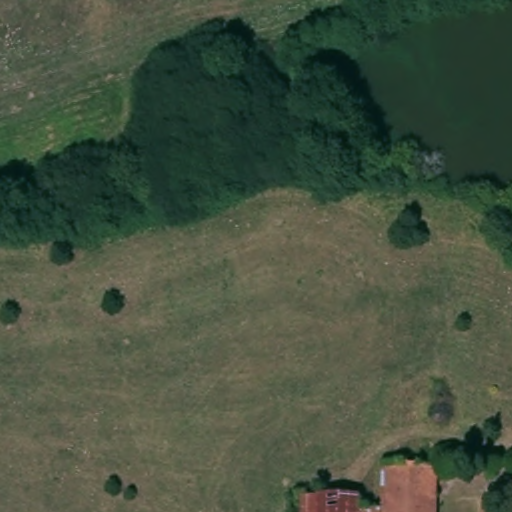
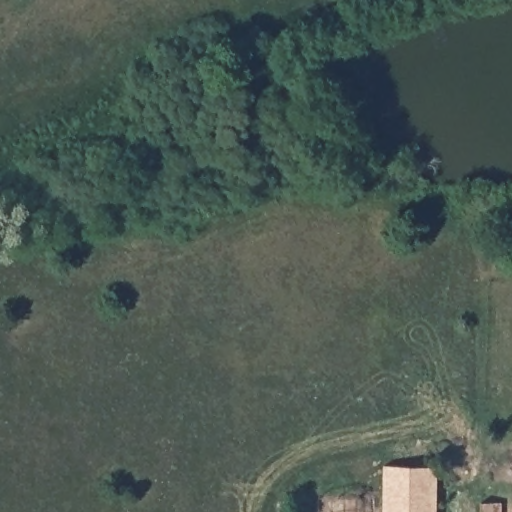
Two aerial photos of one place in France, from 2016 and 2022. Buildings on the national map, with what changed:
unchanged [(403,504),(393,504),(393,467),(428,466),(431,512),(403,512),(403,504)]
unchanged [(353,501),(353,509),(376,510),(376,467),(393,467),(393,504),(403,504),(403,512),(315,512),(315,500),(353,501)]
unchanged [(496,502),(497,512),(476,512),(475,502),(496,502)]

